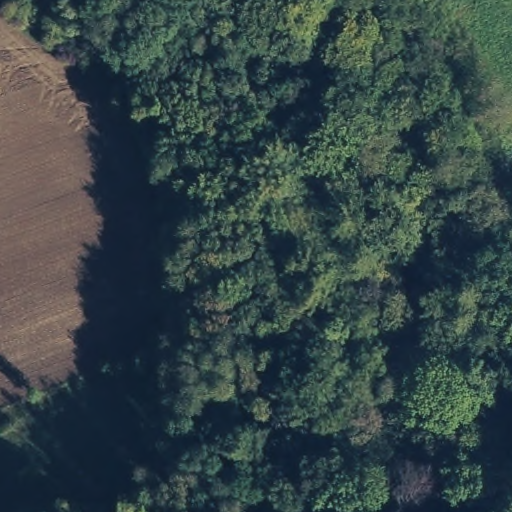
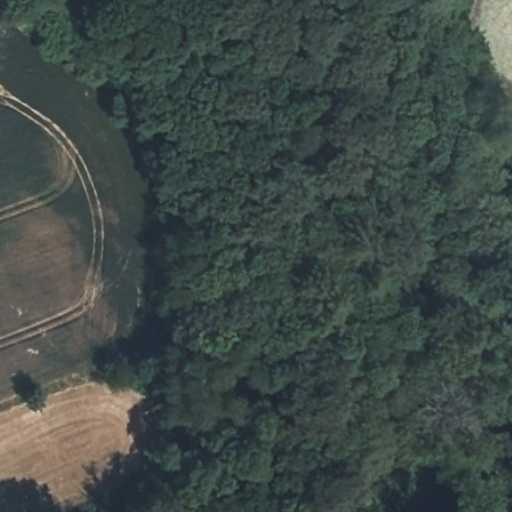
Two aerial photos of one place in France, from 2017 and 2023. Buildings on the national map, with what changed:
[]

